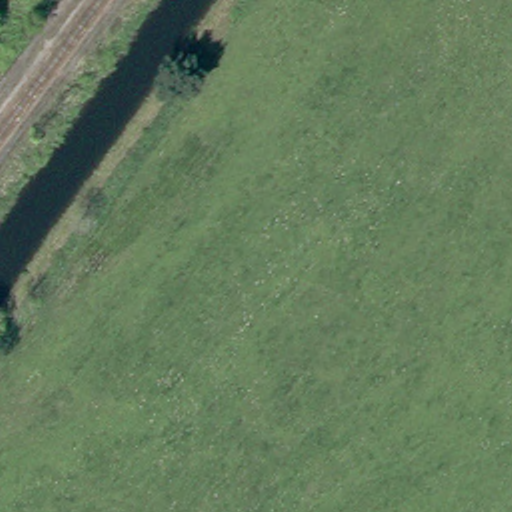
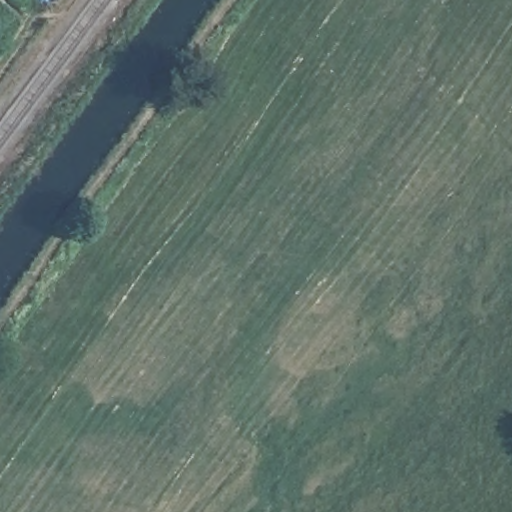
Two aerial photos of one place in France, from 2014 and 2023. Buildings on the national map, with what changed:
[]

